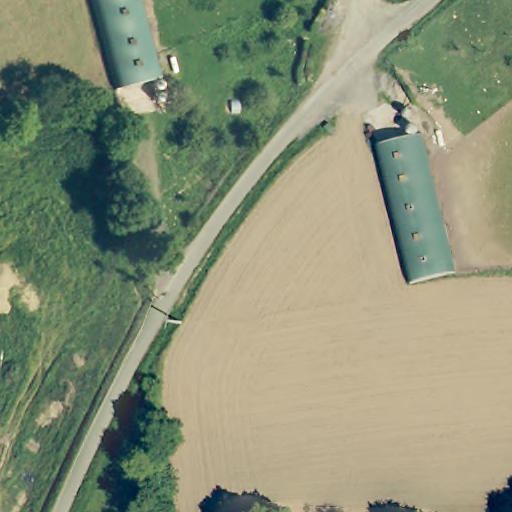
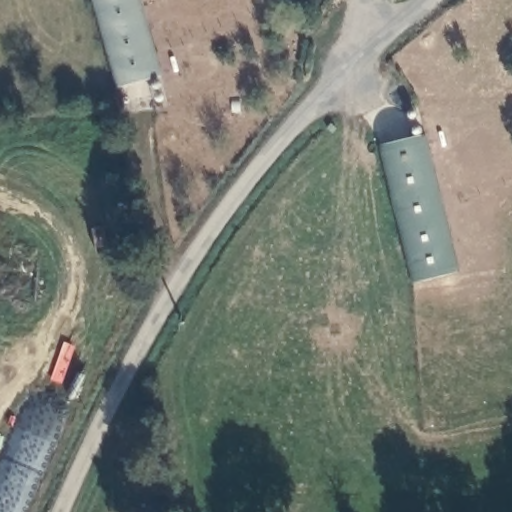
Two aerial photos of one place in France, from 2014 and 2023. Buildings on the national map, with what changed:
unchanged [(94,0),(143,0),(162,75),(116,87),(94,0)]
unchanged [(378,146),(424,135),(457,274),(412,285),(378,146)]

